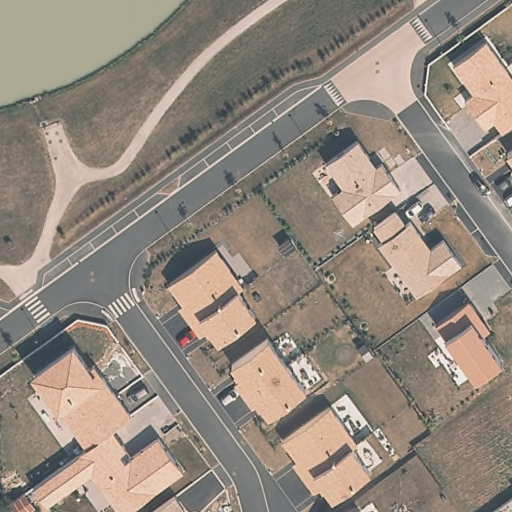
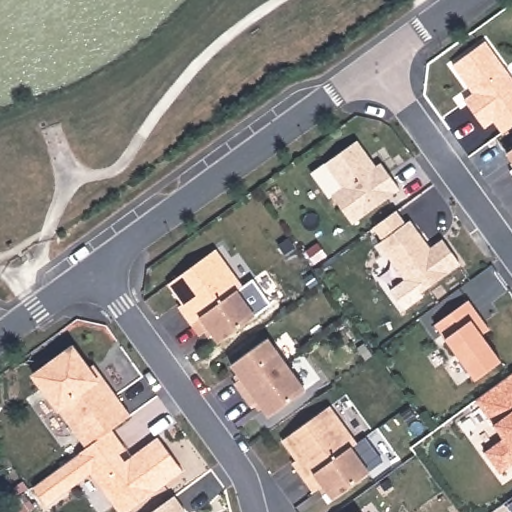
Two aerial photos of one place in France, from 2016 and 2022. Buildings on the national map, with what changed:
unchanged [(512,75),(512,126),(502,134),(495,123),(486,129),(464,99),(473,92),(452,65),(487,40),(512,75)]
unchanged [(356,223),(332,194),(340,188),(323,165),(358,140),(375,166),(381,162),(400,191),(356,223)]
unchanged [(507,153),(512,149),(512,160),(507,153)]
unchanged [(511,172),(512,170),(512,173),(511,172)]
unchanged [(418,296),(378,243),(382,240),(372,229),(396,211),(405,224),(409,220),(431,246),(442,239),(461,265),(418,296)]
unchanged [(244,287),(237,292),(257,317),(217,344),(211,334),(207,337),(204,334),(199,337),(178,306),(183,302),(169,283),(217,249),(244,287)]
unchanged [(475,381),(436,325),(468,300),(490,329),(483,335),(503,362),(475,381)]
unchanged [(306,390),(270,418),(262,407),(259,412),(233,385),(241,378),(231,366),(270,338),(306,390)]
unchanged [(73,344),(90,367),(94,364),(132,414),(113,429),(127,450),(122,454),(126,460),(157,437),(184,472),(126,512),(118,512),(91,475),(47,506),(34,487),(84,449),(31,375),(73,344)]
new [(498,474),(483,452),(503,440),(494,426),(476,401),(512,374),(512,464),(498,474)]
unchanged [(360,443),(353,447),(372,472),(332,502),(323,490),(322,495),(320,491),(314,494),(292,465),(297,461),(283,442),(331,407),(360,443)]
unchanged [(187,510),(185,512),(150,512),(176,493),(187,510)]
unchanged [(507,507),(512,504),(512,512),(507,507)]

